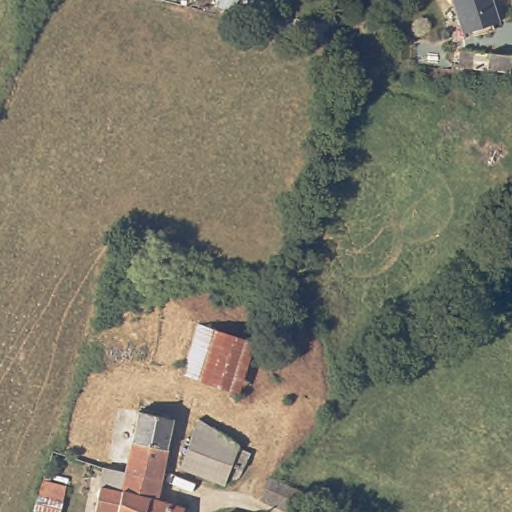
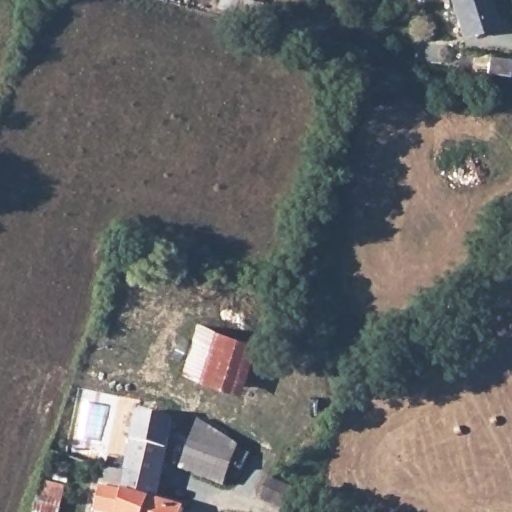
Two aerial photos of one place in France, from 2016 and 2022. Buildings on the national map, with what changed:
unchanged [(496,22),(461,34),(451,0),(489,0),(496,22)]
unchanged [(411,46),(411,52),(406,52),(406,46),(411,46)]
unchanged [(459,52),(509,57),(507,73),(458,67),(459,52)]
unchanged [(216,328),(253,341),(236,389),(200,376),(216,328)]
unchanged [(187,465),(203,415),(242,443),(241,447),(253,451),(245,467),(236,464),(229,482),(187,465)]
unchanged [(174,425),(159,488),(156,505),(175,512),(99,512),(106,474),(127,477),(137,416),(174,425)]
unchanged [(310,498),(305,512),(290,512),(262,499),(270,480),(310,498)]
unchanged [(238,512),(230,512),(231,509),(238,512)]

